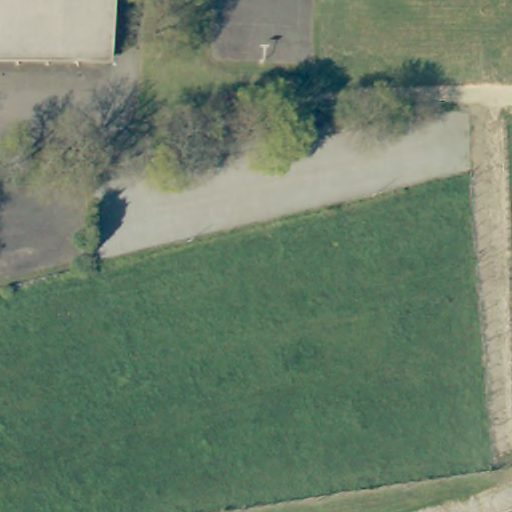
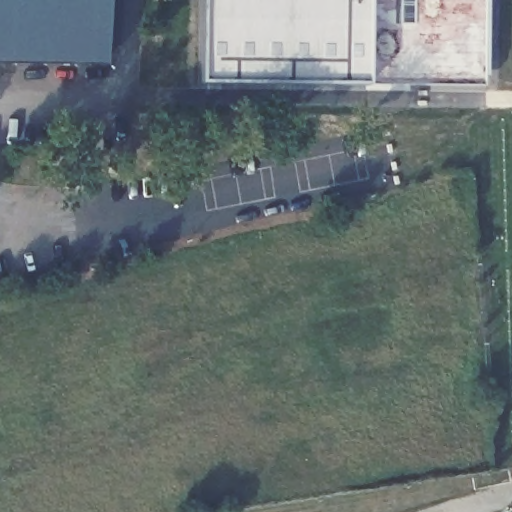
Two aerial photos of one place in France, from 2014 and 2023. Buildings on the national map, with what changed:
unchanged [(0,0),(104,0),(102,69),(0,68),(0,0)]
new [(365,95),(368,105),(194,107),(193,0),(484,0),(484,100),(365,95)]
demolished [(54,189),(91,190),(89,236),(54,236),(54,189)]

